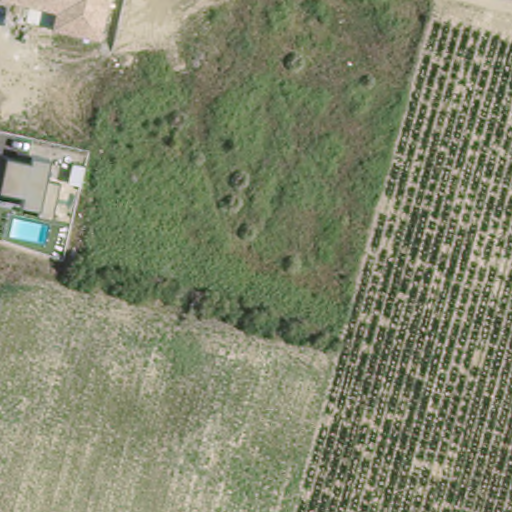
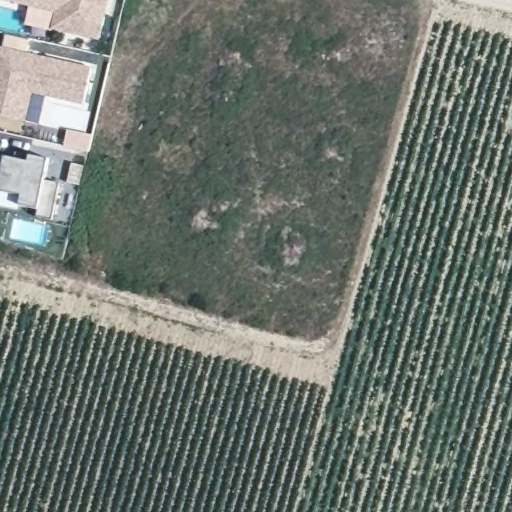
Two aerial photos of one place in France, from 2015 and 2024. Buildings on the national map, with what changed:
unchanged [(101,40),(52,31),(55,13),(0,0),(110,0),(101,40)]
new [(84,100),(32,89),(26,117),(0,111),(0,42),(92,63),(84,100)]
unchanged [(32,156),(50,160),(46,181),(60,183),(52,219),(37,217),(38,209),(20,206),(22,196),(0,191),(0,155),(30,162),(32,156)]

